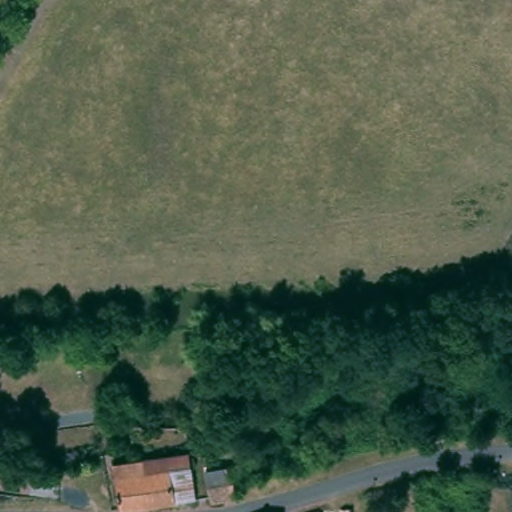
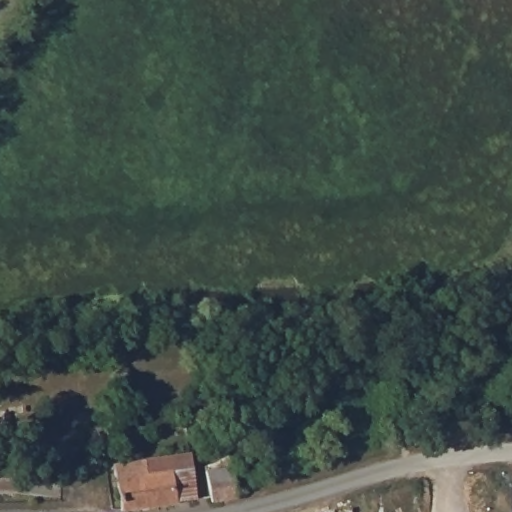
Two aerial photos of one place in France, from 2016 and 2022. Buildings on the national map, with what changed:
unchanged [(173,459),(190,457),(195,500),(115,507),(114,500),(111,467),(173,459)]
unchanged [(213,512),(208,469),(232,466),(239,507),(213,512)]

